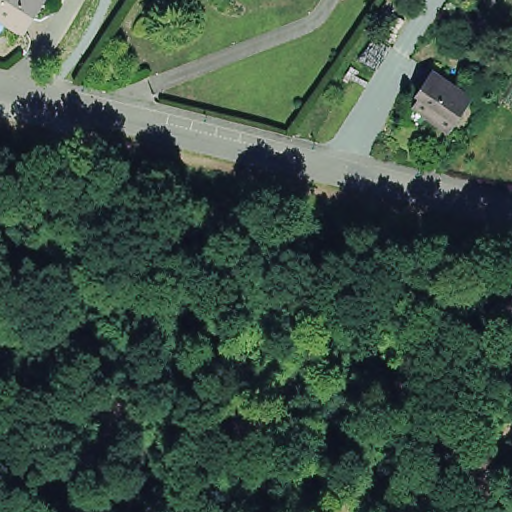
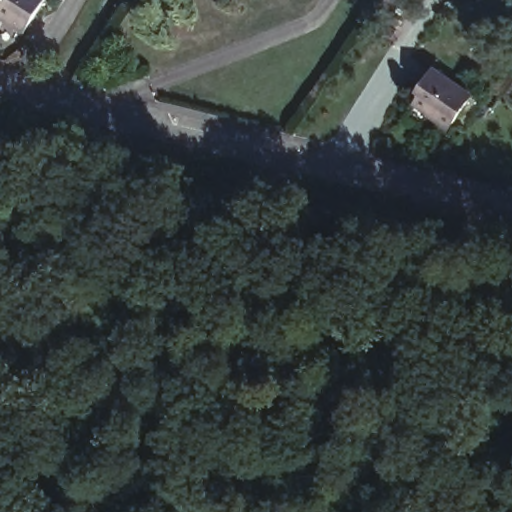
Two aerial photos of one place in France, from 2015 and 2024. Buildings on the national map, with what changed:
unchanged [(17,33),(0,23),(0,0),(38,0),(17,33)]
unchanged [(415,96),(435,65),(470,88),(448,119),(415,96)]

